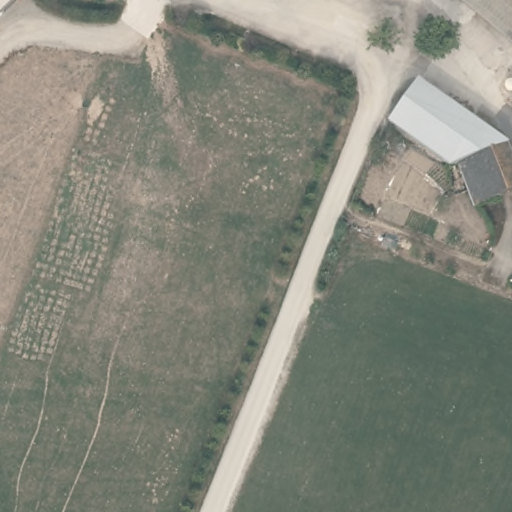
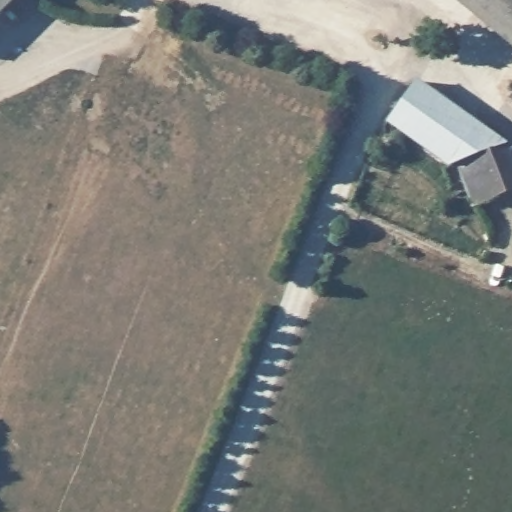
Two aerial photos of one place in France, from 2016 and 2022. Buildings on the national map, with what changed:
unchanged [(0,14),(0,0),(15,0),(0,14)]
unchanged [(512,48),(454,0),(512,0),(512,48)]
unchanged [(401,109),(418,85),(419,85),(485,133),(507,149),(501,149),(460,164),(446,169),(387,128),(401,109)]
unchanged [(512,101),(510,99),(512,98),(512,101)]
unchanged [(507,149),(512,161),(512,197),(477,211),(460,164),(501,149),(507,149)]

